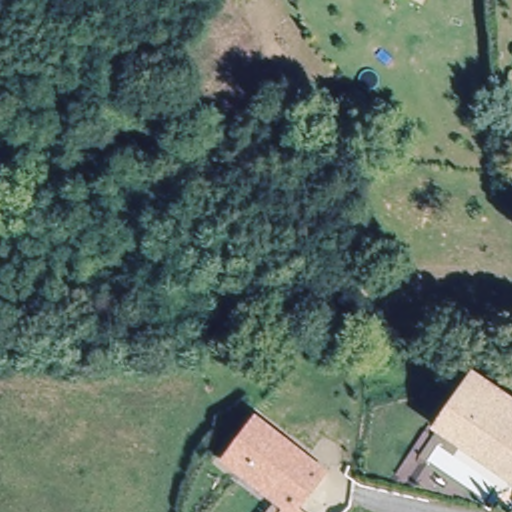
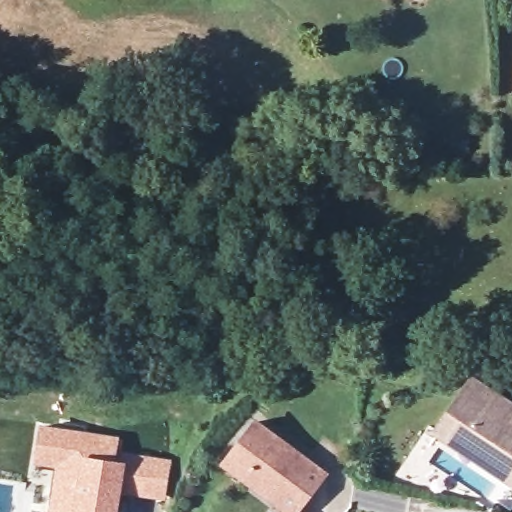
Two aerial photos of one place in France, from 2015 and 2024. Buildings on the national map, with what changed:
unchanged [(440,432),(476,381),(512,406),(512,483),(495,471),(463,449),(440,432)]
unchanged [(276,501),(245,476),(226,462),(258,421),(276,435),(308,460),(326,474),(316,487),(307,498),(297,511),(299,512),(286,512),(288,510),(276,501)]
new [(122,496),(119,512),(49,512),(56,465),(35,462),(40,423),(120,436),(118,450),(172,459),(165,500),(122,496)]

